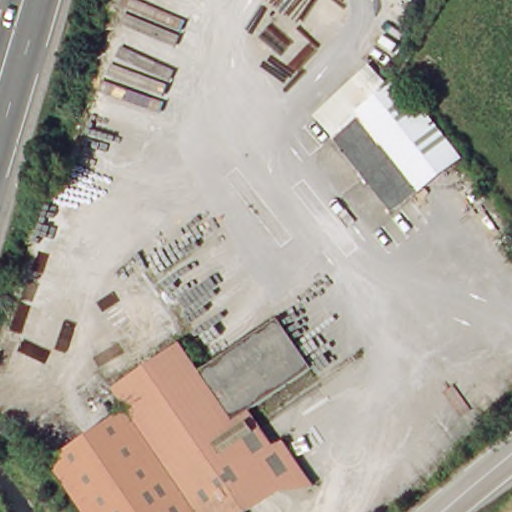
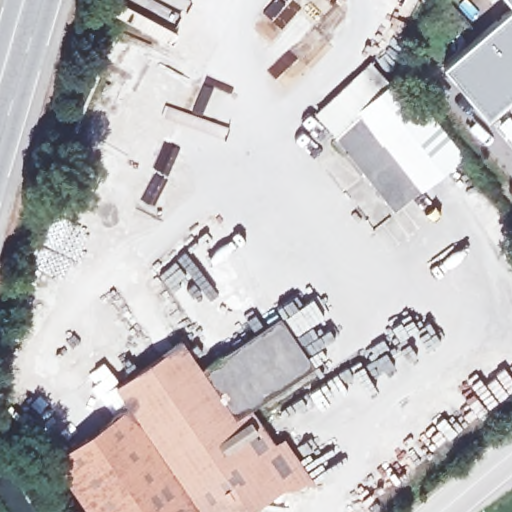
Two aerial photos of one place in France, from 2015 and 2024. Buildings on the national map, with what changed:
new [(512,0),(512,5),(508,0),(512,0)]
new [(512,95),(487,116),(443,65),(512,9),(512,95)]
unchanged [(314,118),(381,67),(392,80),(397,87),(339,131),(329,138),(314,118)]
unchanged [(331,139),(329,138),(339,131),(397,87),(452,159),(386,210),(331,139)]
unchanged [(225,415),(279,492),(249,512),(85,512),(53,468),(131,412),(115,391),(178,346),(193,367),(264,315),(296,364),(238,406),(225,415)]
unchanged [(225,415),(238,406),(265,444),(273,439),(299,477),(279,492),(225,415)]

